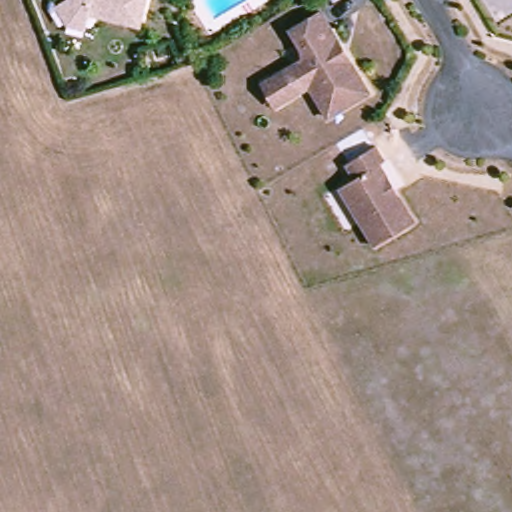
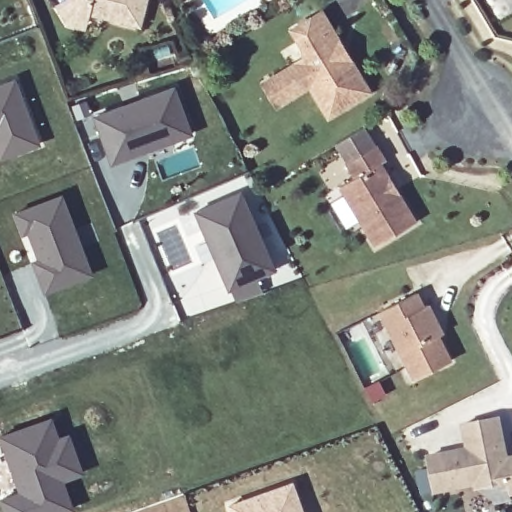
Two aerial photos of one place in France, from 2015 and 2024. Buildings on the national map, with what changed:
unchanged [(57,3),(62,0),(147,0),(141,27),(89,13),(85,27),(68,23),(57,3)]
unchanged [(324,120),(304,90),(278,104),(265,81),(300,61),(285,32),(316,15),(333,43),(336,41),(349,61),(344,64),(363,96),(324,120)]
new [(16,75),(41,144),(0,159),(0,81),(16,75)]
new [(189,135),(170,142),(168,136),(129,149),(126,150),(128,155),(109,162),(94,115),(174,89),(189,135)]
unchanged [(383,159),(378,162),(390,179),(386,182),(390,189),(395,188),(414,220),(375,244),(340,185),(356,175),(347,161),(374,144),(383,159)]
new [(226,289),(219,270),(224,267),(208,230),(207,227),(201,230),(193,211),(239,192),(272,270),(226,289)]
new [(22,230),(16,232),(8,213),(54,195),(85,272),(39,290),(31,271),(27,261),(33,259),(37,268),(22,230)]
new [(419,293),(424,305),(429,303),(443,331),(438,334),(452,362),(412,381),(379,313),(419,293)]
new [(59,434),(69,430),(84,474),(64,481),(74,509),(67,512),(2,512),(0,507),(0,497),(16,490),(0,446),(0,433),(52,415),(59,434)]
new [(467,448),(462,423),(502,416),(509,457),(512,456),(512,493),(510,482),(477,489),(476,485),(435,494),(428,456),(467,448)]
new [(287,478),(299,512),(229,512),(225,500),(287,478)]

